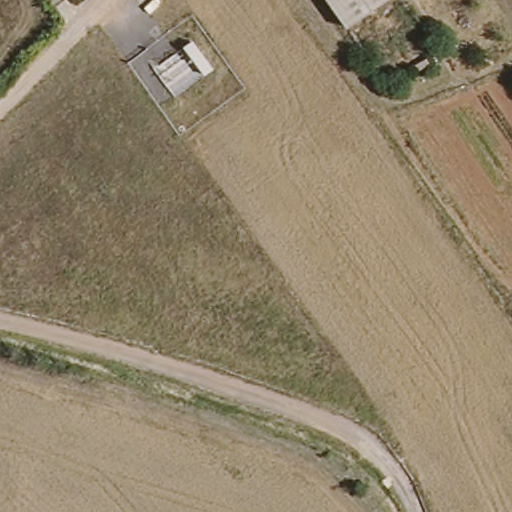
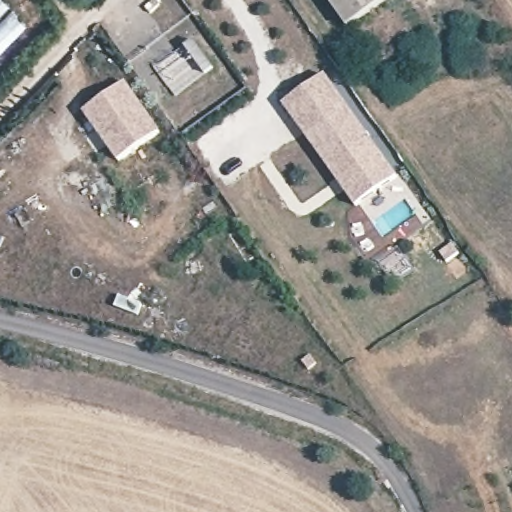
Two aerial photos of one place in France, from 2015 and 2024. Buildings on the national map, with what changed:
unchanged [(329,0),(391,0),(350,29),(329,0)]
new [(397,177),(355,206),(280,104),(322,76),(397,177)]
new [(158,135),(115,164),(81,114),(121,86),(158,135)]

